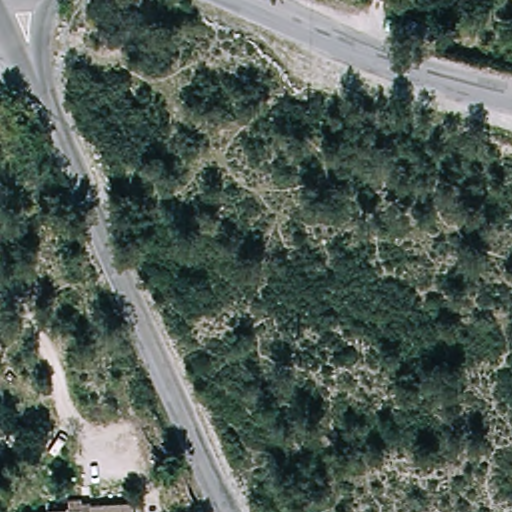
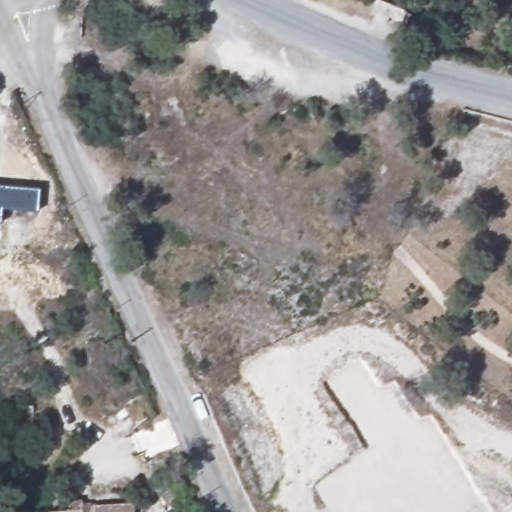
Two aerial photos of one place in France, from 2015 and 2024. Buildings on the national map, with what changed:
new [(39,189),(37,211),(1,208),(0,223),(0,185),(39,189)]
unchanged [(131,502),(131,512),(44,512),(44,510),(131,502)]

